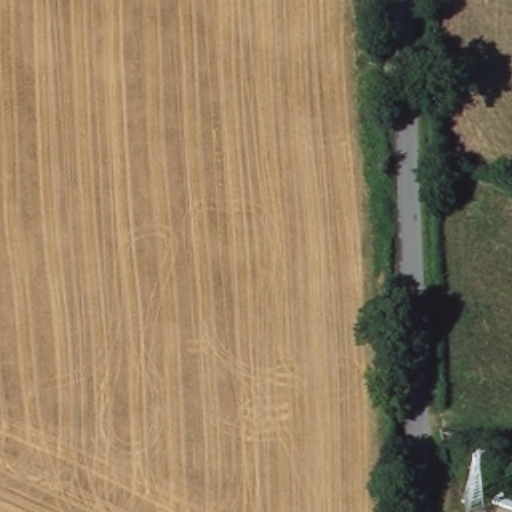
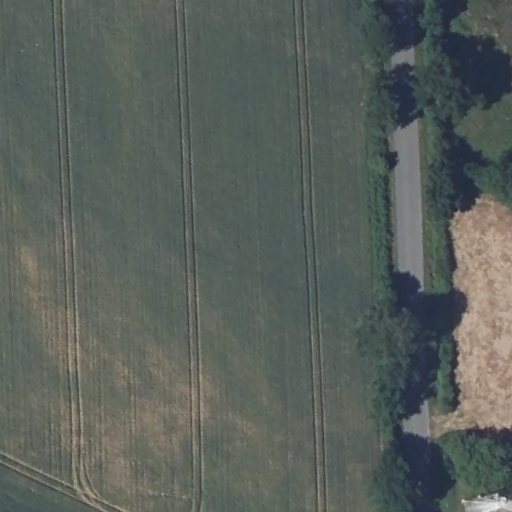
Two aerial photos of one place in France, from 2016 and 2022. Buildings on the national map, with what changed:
unchanged [(512,484),(509,483),(512,474),(512,484)]

